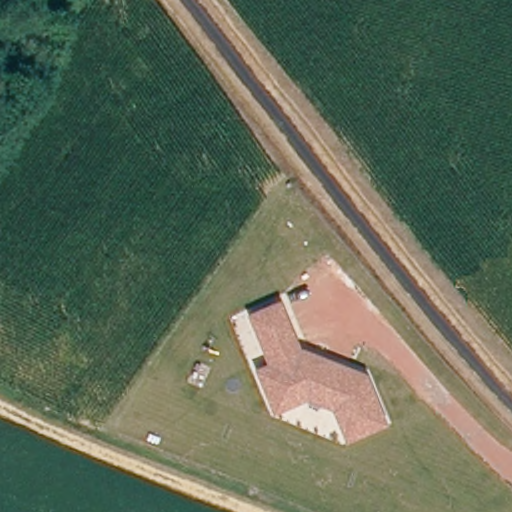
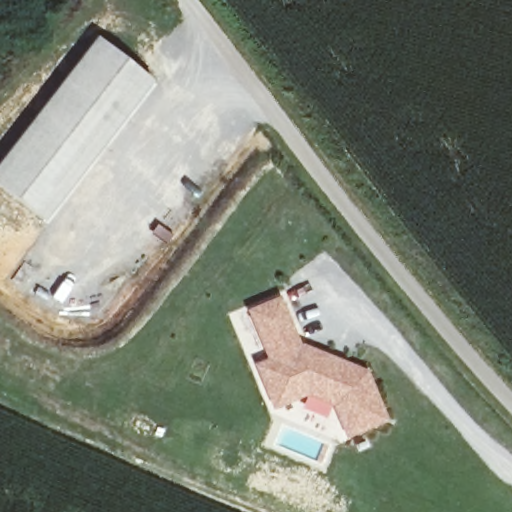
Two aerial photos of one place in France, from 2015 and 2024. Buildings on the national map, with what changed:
new [(43,221),(0,187),(0,159),(95,36),(152,80),(43,221)]
unchanged [(271,401),(264,385),(260,375),(255,361),(268,355),(253,318),(248,306),(276,295),(292,335),(299,351),(309,347),(320,351),(335,357),(362,367),(381,414),(344,430),(331,398),(303,387),(271,401)]

